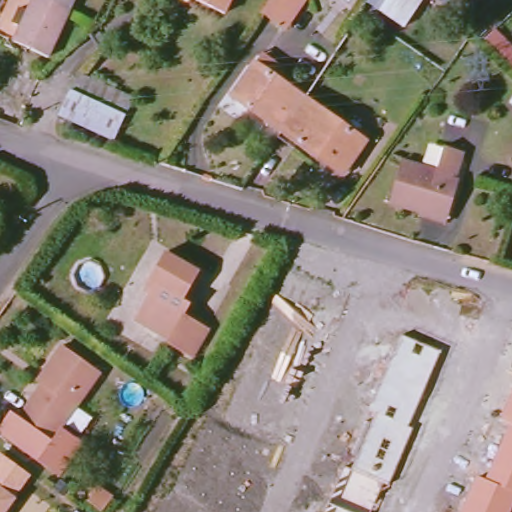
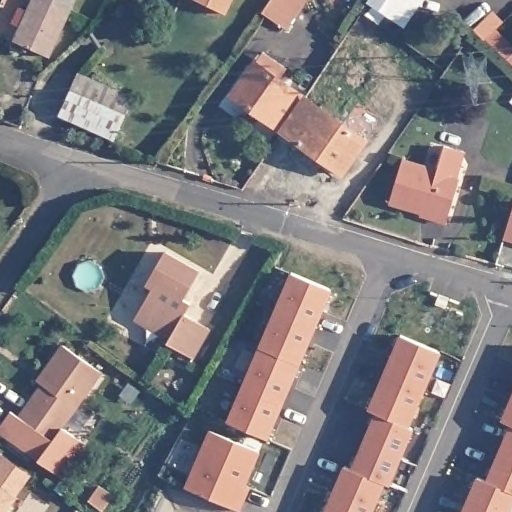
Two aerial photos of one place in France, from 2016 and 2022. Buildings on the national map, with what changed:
unchanged [(59,6),(38,50),(3,34),(19,0),(46,0),(59,6)]
unchanged [(46,0),(62,0),(59,6),(46,0)]
unchanged [(227,18),(195,0),(237,0),(227,18)]
unchanged [(290,29),(268,14),(278,0),(310,0),(290,29)]
unchanged [(374,1),(375,0),(417,0),(400,21),(387,10),(374,1)]
unchanged [(237,100),(263,64),(312,98),(287,135),(237,100)]
unchanged [(116,138),(60,115),(78,77),(79,75),(132,96),(130,104),(116,138)]
unchanged [(372,140),(347,176),(287,135),(312,98),(372,140)]
unchanged [(444,148),(462,153),(455,179),(460,180),(448,216),(424,209),(420,211),(389,202),(403,160),(437,170),(444,148)]
new [(512,210),(512,242),(502,240),(512,210)]
unchanged [(201,273),(186,297),(193,304),(187,315),(208,332),(195,359),(168,343),(172,336),(142,316),(158,292),(148,283),(166,252),(201,273)]
new [(268,438),(227,420),(291,271),(331,290),(268,438)]
new [(375,418),(367,414),(400,336),(443,356),(412,430),(415,432),(390,494),(384,494),(376,512),(326,512),(345,469),(352,473),(375,418)]
new [(82,442),(60,476),(0,432),(0,426),(10,411),(15,415),(40,383),(35,380),(61,345),(102,374),(62,429),(82,442)]
demolished [(100,376),(52,442),(20,420),(48,381),(42,375),(62,346),(100,376)]
unchanged [(461,512),(477,476),(485,480),(509,425),(499,421),(512,392),(512,507),(510,512),(461,512)]
new [(241,511),(183,487),(208,430),(260,452),(245,486),(250,487),(241,511)]
new [(6,512),(0,512),(0,453),(32,475),(6,512)]
demolished [(9,512),(0,512),(0,490),(16,502),(9,512)]

